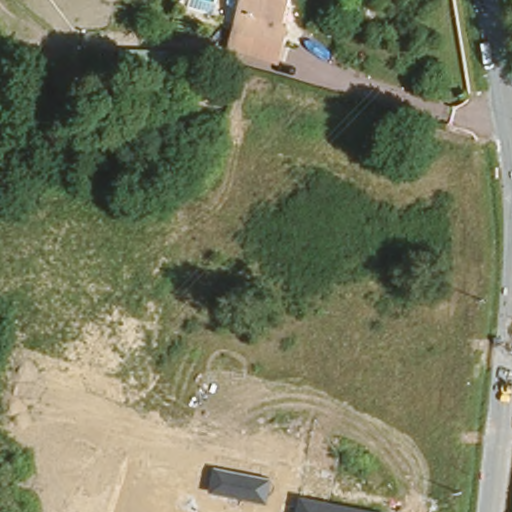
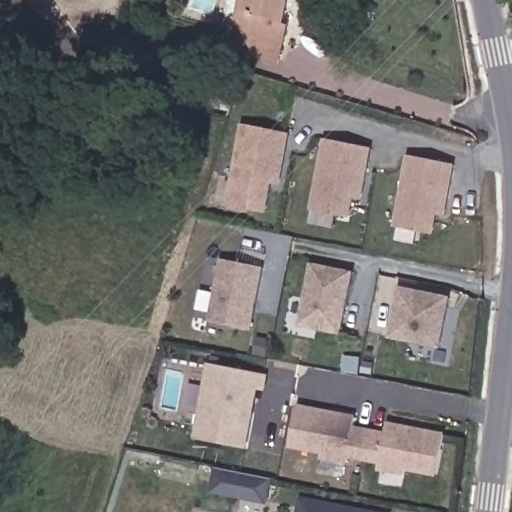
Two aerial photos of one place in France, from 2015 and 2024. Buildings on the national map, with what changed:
unchanged [(286,17),(280,37),(227,17),(234,0),(282,0),(277,14),(286,17)]
new [(268,181),(262,211),(226,204),(242,126),(287,132),(277,182),(268,181)]
new [(361,197),(352,196),(349,217),(312,211),(325,136),(370,144),(361,197)]
new [(442,212),(435,211),(431,232),(394,226),(407,152),(451,160),(442,212)]
new [(247,330),(208,323),(220,262),(259,269),(247,330)]
new [(333,332),(293,324),(308,265),(348,273),(333,332)]
new [(433,347),(384,338),(397,287),(445,297),(433,347)]
new [(267,392),(260,390),(249,449),(194,438),(208,363),(270,375),(267,392)]
new [(437,472),(405,467),(403,472),(377,467),(378,462),(347,456),(346,462),(320,457),(321,452),(288,446),(292,407),(351,417),(349,427),(381,432),(382,422),(441,432),(437,472)]
unchanged [(269,506),(209,493),(213,470),(272,482),(269,506)]
unchanged [(381,512),(296,512),(299,497),(381,512)]

